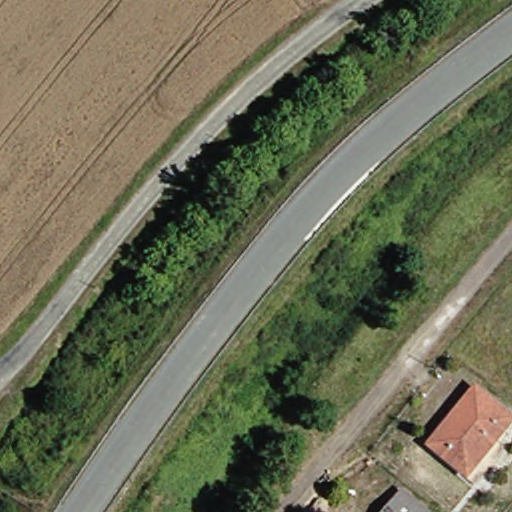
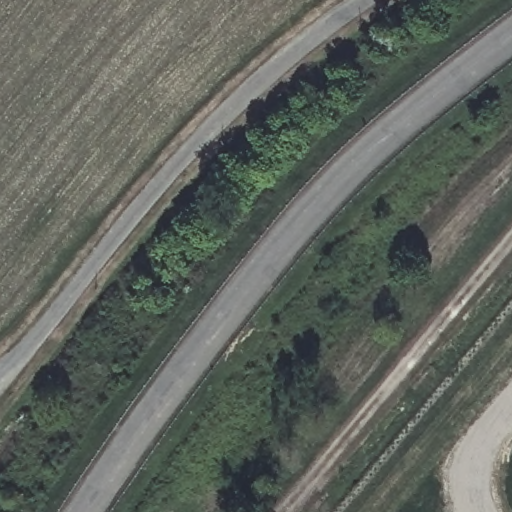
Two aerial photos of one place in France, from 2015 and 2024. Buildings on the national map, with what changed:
demolished [(439,450),(482,394),(512,416),(512,428),(474,477),(439,450)]
demolished [(398,497),(402,492),(428,512),(387,512),(398,497)]

